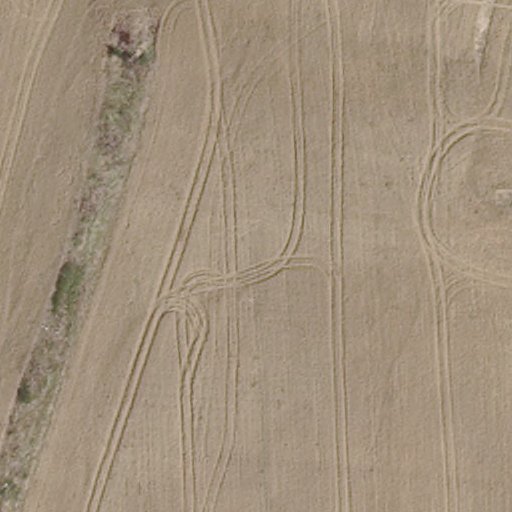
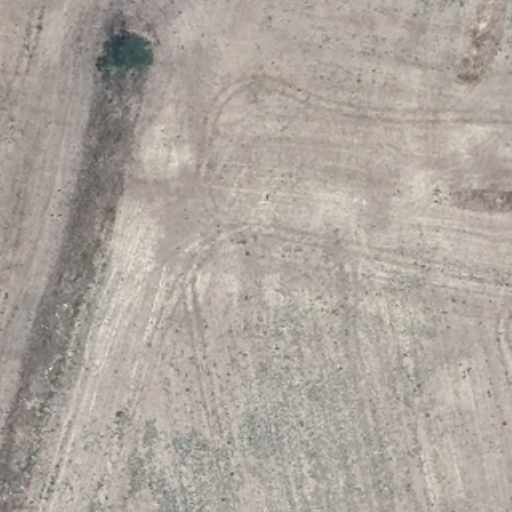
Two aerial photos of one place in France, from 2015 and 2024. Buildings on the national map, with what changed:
[]

